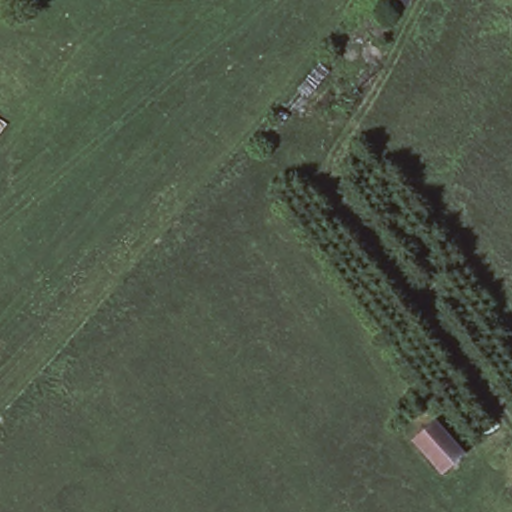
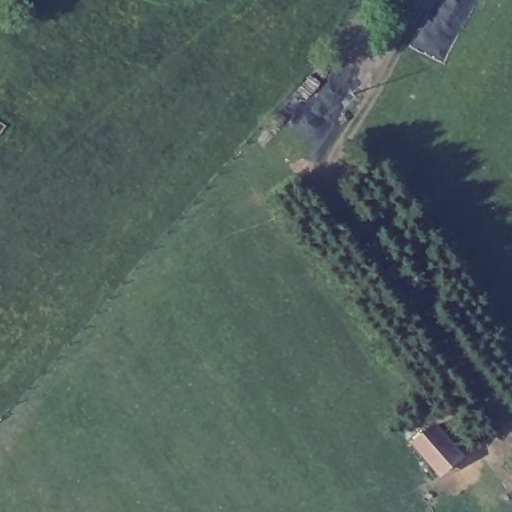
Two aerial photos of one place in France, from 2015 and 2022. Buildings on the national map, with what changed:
unchanged [(410,438),(435,418),(465,452),(440,473),(410,438)]

